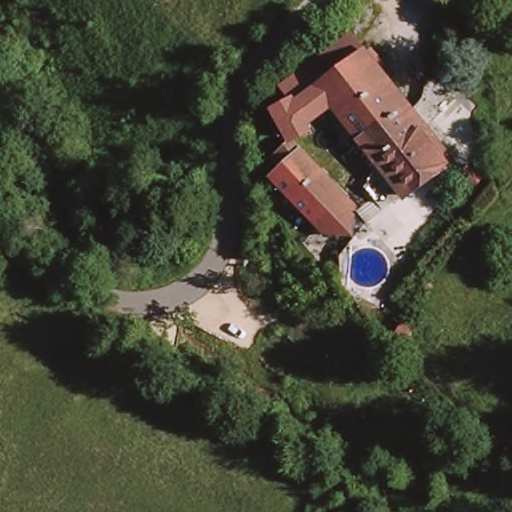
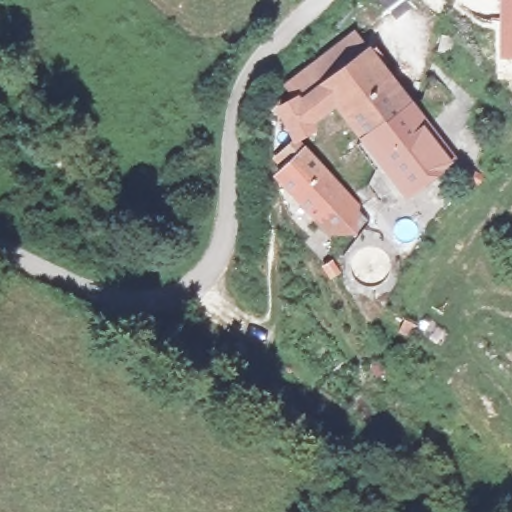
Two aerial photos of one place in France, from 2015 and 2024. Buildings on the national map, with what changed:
new [(512,60),(498,60),(499,0),(512,0),(512,60)]
unchanged [(335,95),(342,105),(315,122),(324,136),(303,152),(272,109),(289,97),(280,86),(359,31),(380,59),(335,95)]
unchanged [(442,62),(427,60),(430,45),(445,48),(442,62)]
unchanged [(360,145),(369,139),(342,105),(335,95),(380,59),(462,159),(414,197),(387,161),(378,167),(360,145)]
unchanged [(296,147),(282,170),(272,164),(285,140),(296,147)]
unchanged [(334,240),(327,236),(282,207),(290,195),(280,188),(289,173),(345,207),(358,215),(334,240)]

